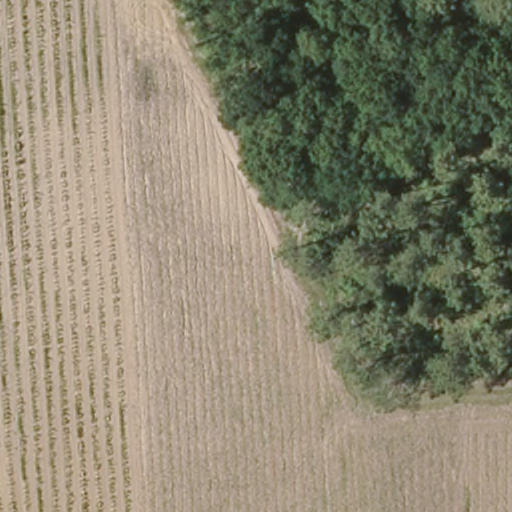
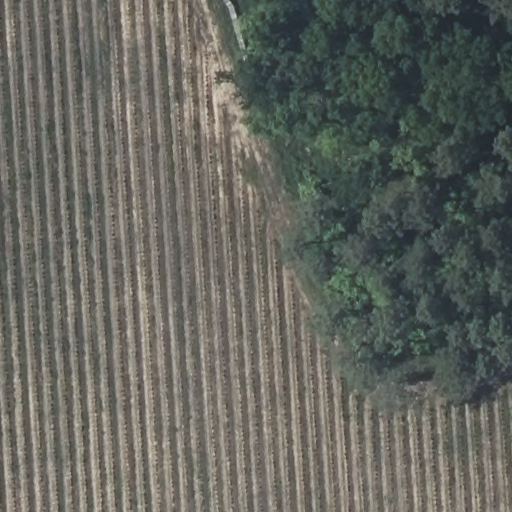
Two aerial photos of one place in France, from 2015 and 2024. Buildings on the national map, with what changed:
[]

